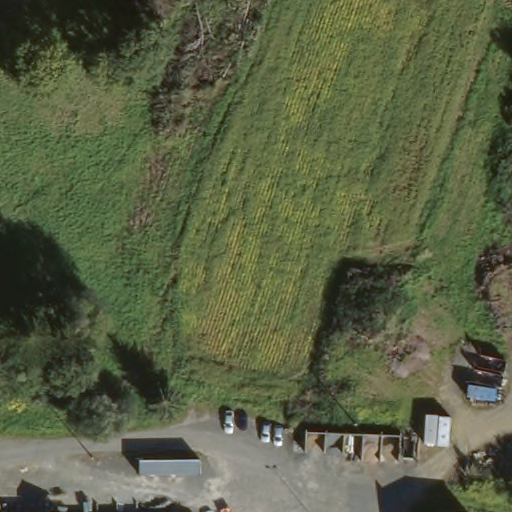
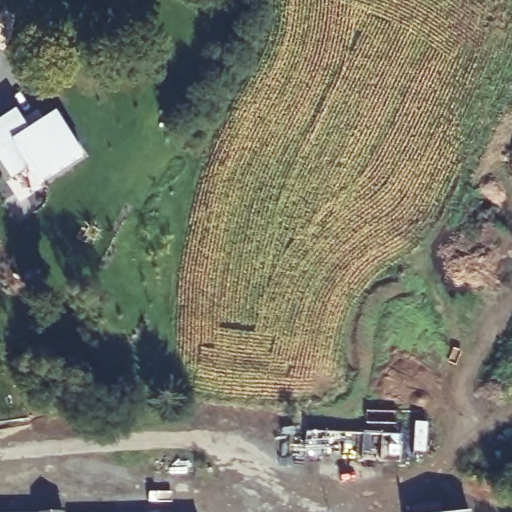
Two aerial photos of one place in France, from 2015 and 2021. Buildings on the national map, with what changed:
new [(39,184),(29,168),(13,179),(0,158),(0,122),(15,113),(32,137),(38,131),(36,128),(53,115),(81,157),(39,184)]
unchanged [(41,510),(73,511),(73,512),(10,512),(41,510)]

